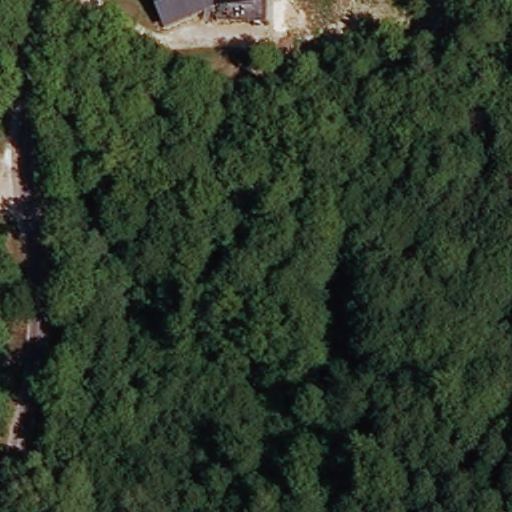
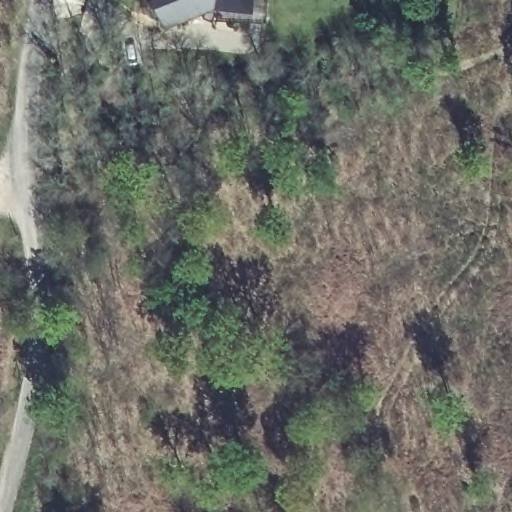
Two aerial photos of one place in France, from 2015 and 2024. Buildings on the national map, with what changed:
unchanged [(158,13),(151,0),(181,0),(158,13)]
unchanged [(257,9),(207,8),(207,0),(257,0),(257,9)]

